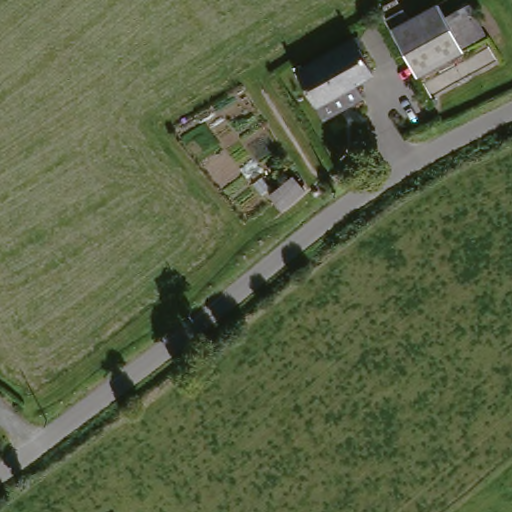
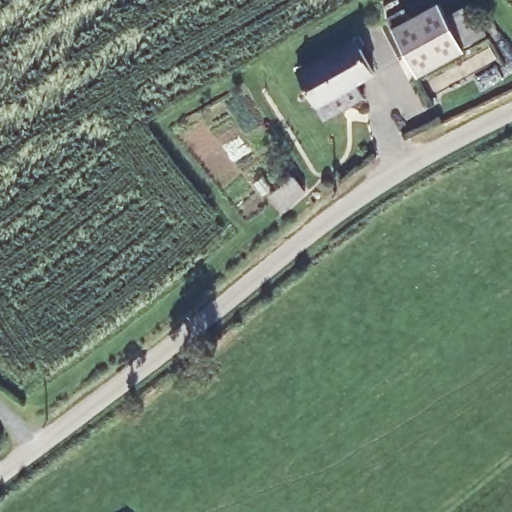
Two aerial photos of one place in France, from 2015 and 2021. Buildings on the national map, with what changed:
unchanged [(387,30),(432,4),(458,50),(414,76),(387,30)]
unchanged [(350,39),(369,76),(352,85),(362,103),(323,125),(295,72),(350,39)]

